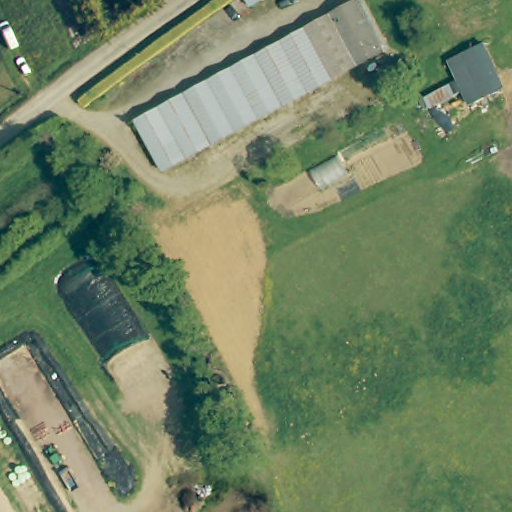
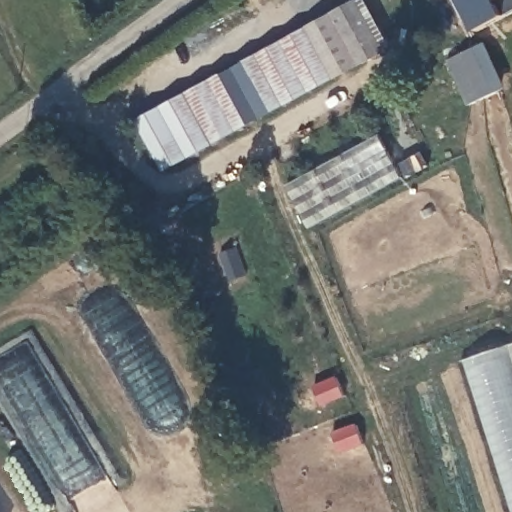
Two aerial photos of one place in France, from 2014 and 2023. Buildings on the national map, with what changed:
unchanged [(328,18),(353,4),(380,53),(355,67),(159,172),(134,124),(328,18)]
unchanged [(466,95),(450,64),(486,46),(508,90),(472,108),(474,112),(438,130),(429,112),(466,95)]
new [(512,344),(512,511),(464,360),(512,344)]

